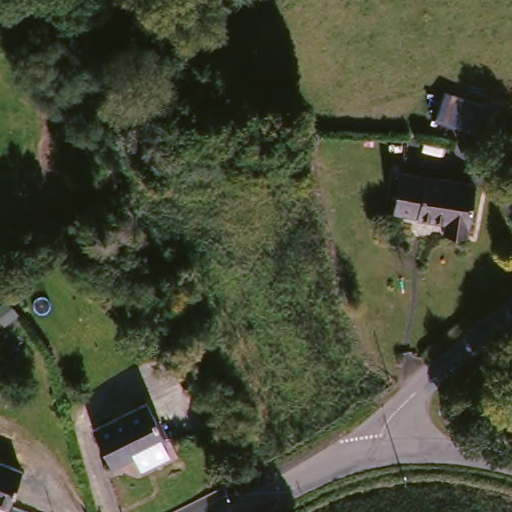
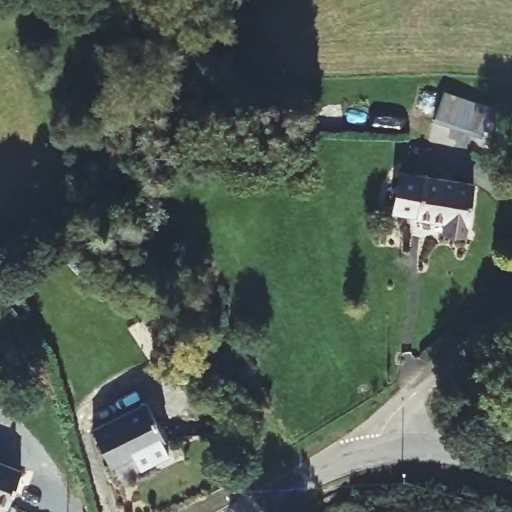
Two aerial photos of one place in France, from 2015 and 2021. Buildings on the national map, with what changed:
unchanged [(444,90),(493,106),(484,135),(435,120),(444,90)]
unchanged [(443,233),(445,224),(417,219),(418,217),(393,213),(399,174),(473,185),(465,237),(443,233)]
unchanged [(23,269),(31,282),(10,298),(6,291),(0,295),(0,283),(1,284),(23,269)]
unchanged [(93,431),(146,405),(164,440),(111,467),(93,431)]
unchanged [(0,464),(20,471),(8,507),(0,504),(0,464)]

